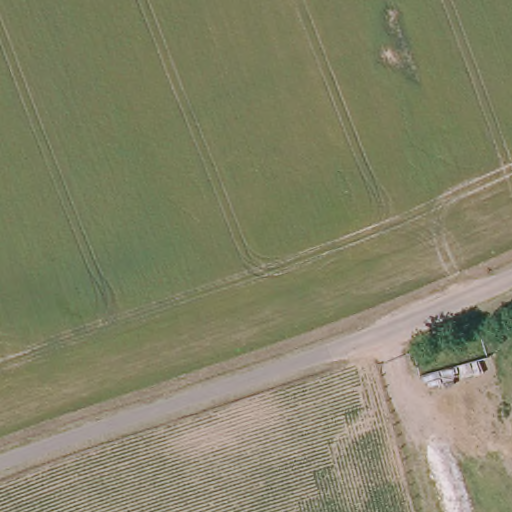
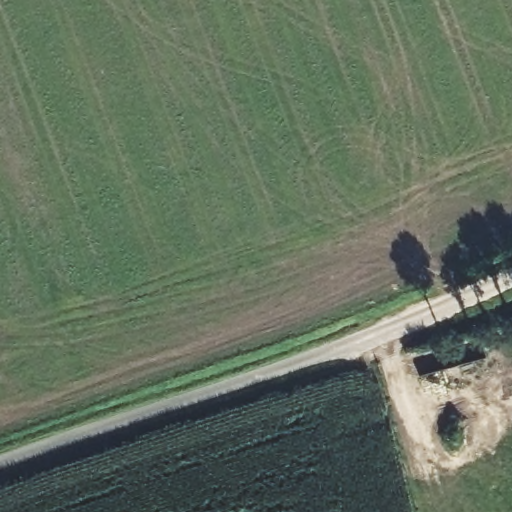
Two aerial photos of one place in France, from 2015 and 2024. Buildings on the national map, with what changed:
[]

